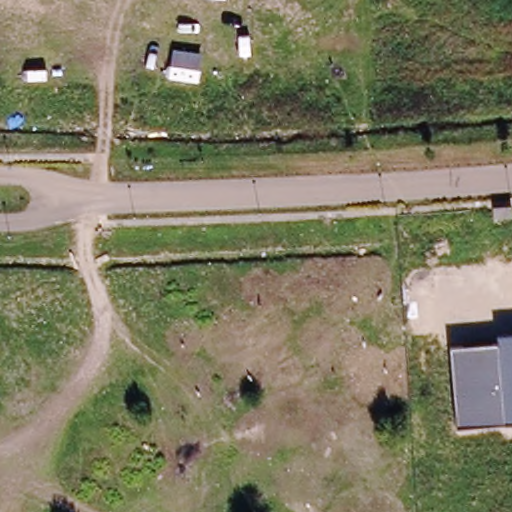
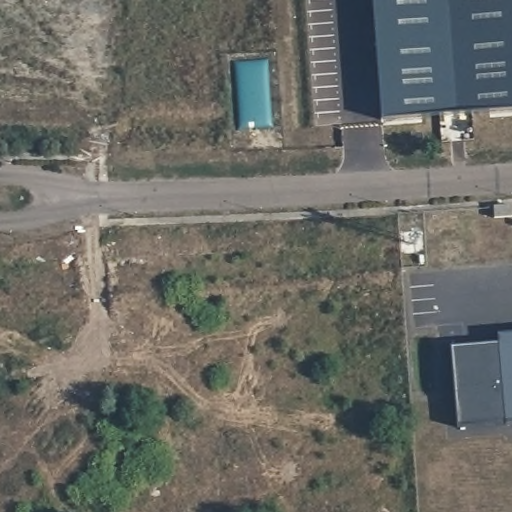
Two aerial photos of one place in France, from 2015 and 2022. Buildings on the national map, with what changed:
new [(386,112),(377,0),(512,0),(512,103),(386,112)]
unchanged [(457,428),(451,348),(498,345),(497,336),(512,335),(512,424),(457,428)]

